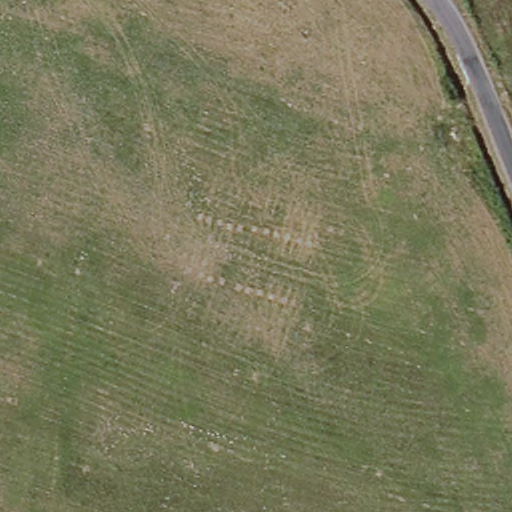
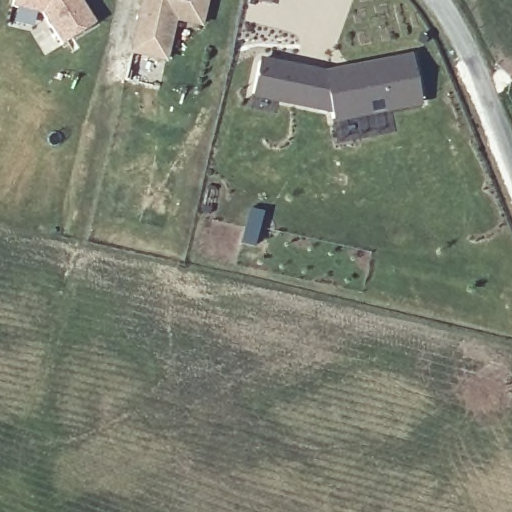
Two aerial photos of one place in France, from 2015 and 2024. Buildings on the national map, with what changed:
new [(95,23),(61,46),(41,13),(11,6),(12,0),(80,0),(95,23)]
new [(202,30),(176,24),(166,64),(127,55),(139,0),(208,0),(202,30)]
new [(272,3),(260,0),(273,0),(272,3)]
new [(330,114),(250,97),(259,55),(331,70),(414,57),(422,105),(331,122),(330,114)]

